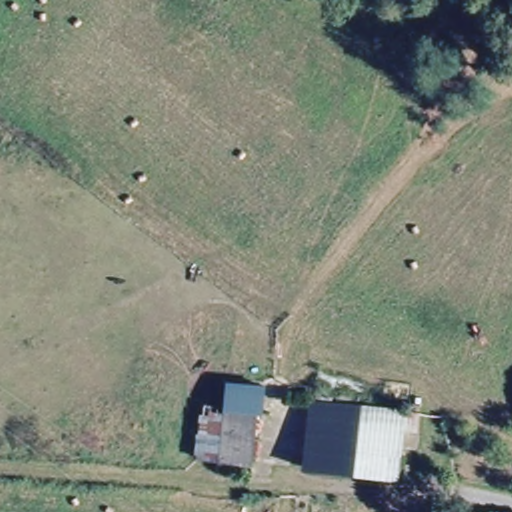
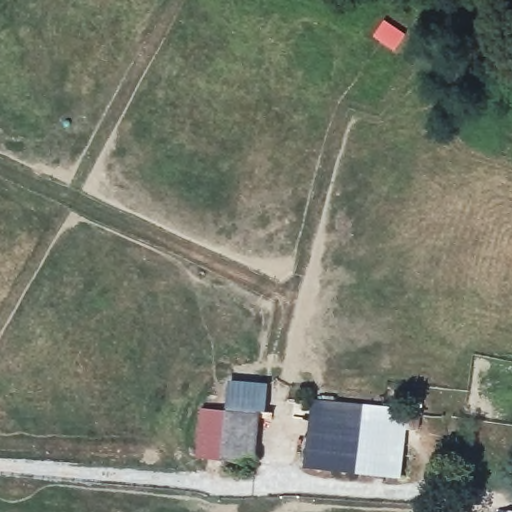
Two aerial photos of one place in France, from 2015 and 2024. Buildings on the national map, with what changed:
unchanged [(267,412),(256,413),(254,461),(198,452),(201,400),(224,404),(226,392),(269,394),(267,412)]
unchanged [(360,424),(310,419),(312,401),(332,403),(420,412),(418,430),(399,428),(360,424)]
unchanged [(310,419),(360,424),(399,428),(397,452),(395,476),(350,472),(352,447),(308,442),(310,419)]
unchanged [(352,447),(350,472),(305,467),(308,442),(352,447)]

